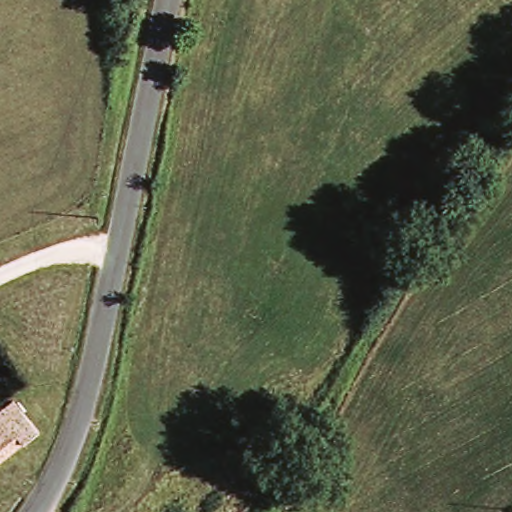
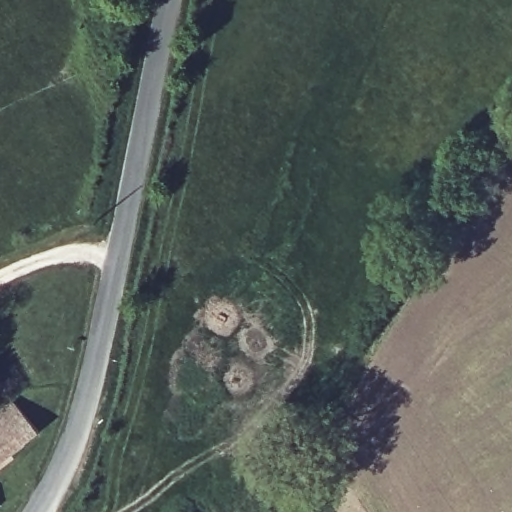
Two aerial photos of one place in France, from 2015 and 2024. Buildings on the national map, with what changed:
unchanged [(15,402),(38,433),(0,465),(0,414),(15,402)]

